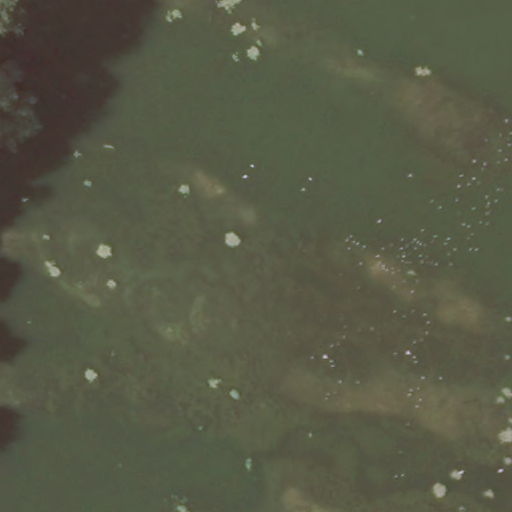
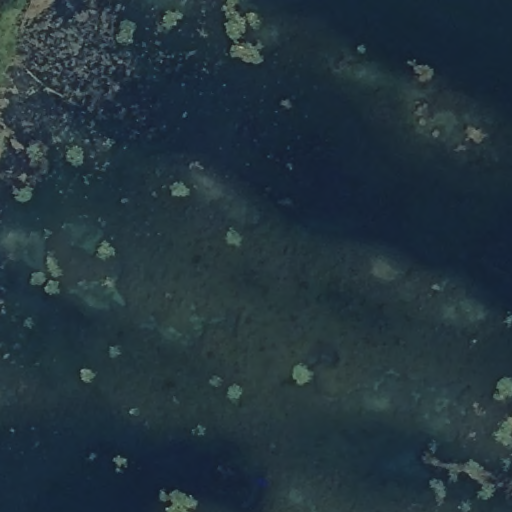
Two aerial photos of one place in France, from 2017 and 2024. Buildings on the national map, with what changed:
[]

